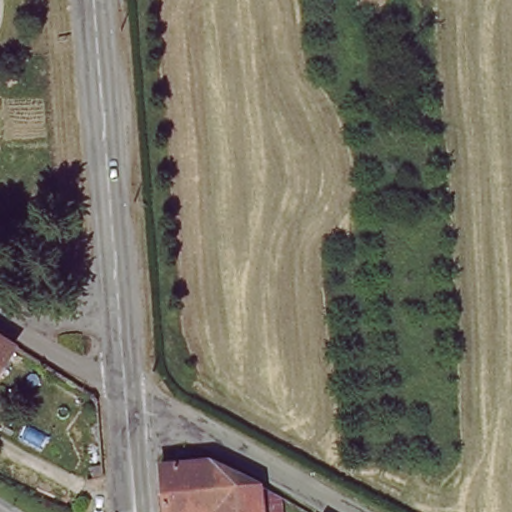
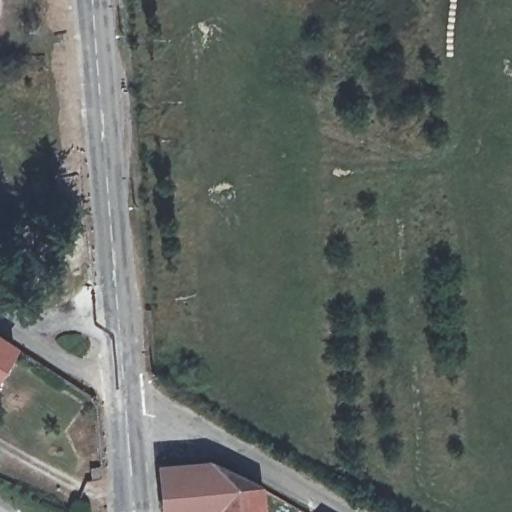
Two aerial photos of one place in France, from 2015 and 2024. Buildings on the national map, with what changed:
unchanged [(0,365),(0,338),(12,346),(0,365)]
unchanged [(157,506),(154,459),(153,450),(201,450),(250,473),(251,474),(275,487),(278,512),(210,512),(208,497),(163,500),(162,509),(157,510),(157,506)]

